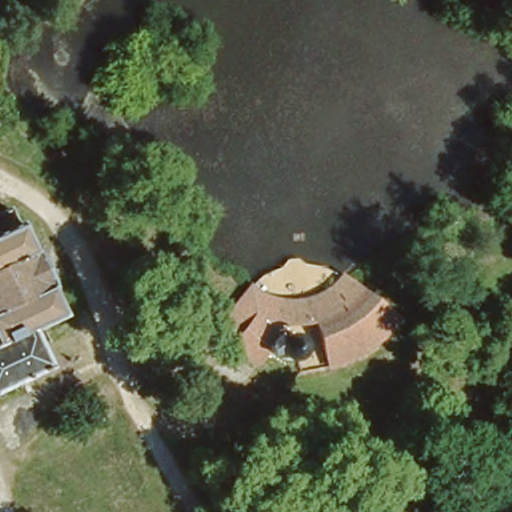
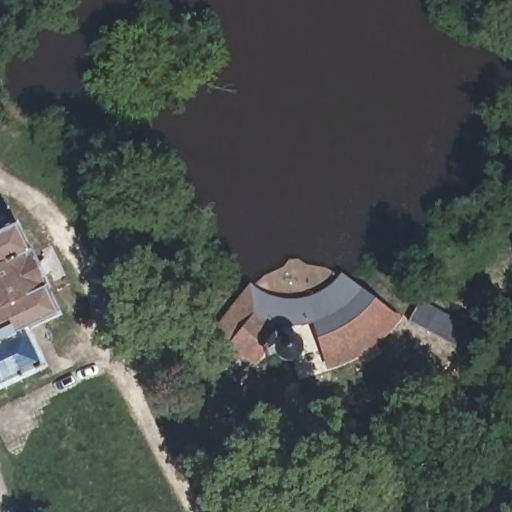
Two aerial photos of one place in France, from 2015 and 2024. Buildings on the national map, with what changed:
unchanged [(2,201),(27,250),(42,242),(54,267),(38,276),(55,308),(28,325),(46,362),(0,387),(0,202),(2,201)]
unchanged [(291,341),(301,345),(306,357),(300,367),(291,370),(279,365),(274,369),(264,362),(258,369),(232,350),(235,347),(218,334),(226,325),(249,297),(265,308),(271,306),(341,285),(388,322),(394,327),(323,372),(320,362),(312,328),(278,331),(273,337),(281,343),(291,341)]

